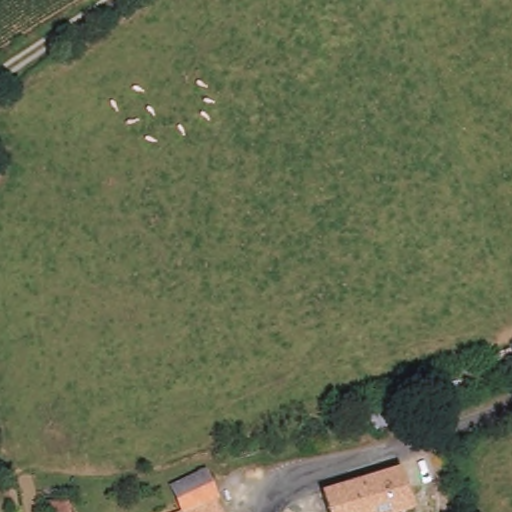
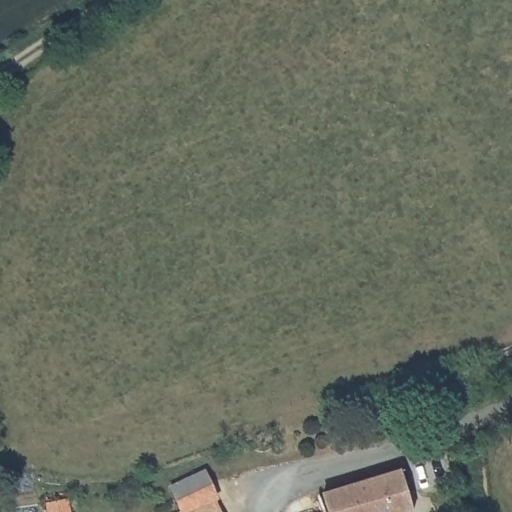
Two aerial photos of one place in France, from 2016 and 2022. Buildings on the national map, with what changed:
unchanged [(436,410),(427,394),(496,365),(505,380),(436,410)]
unchanged [(324,496),(401,472),(413,511),(410,512),(329,512),(324,496)]
unchanged [(169,486),(203,474),(220,512),(178,512),(169,486)]
unchanged [(46,502),(68,498),(71,512),(48,512),(46,502)]

